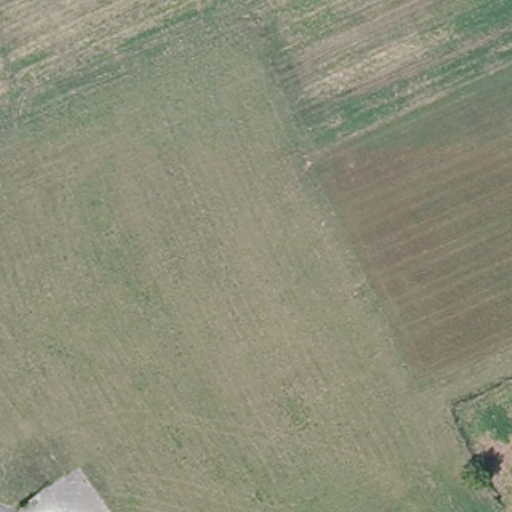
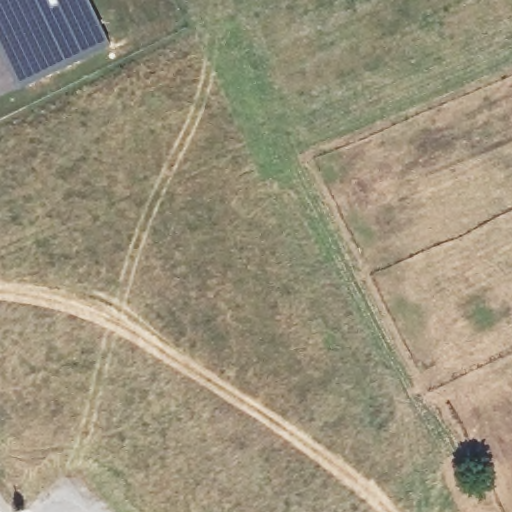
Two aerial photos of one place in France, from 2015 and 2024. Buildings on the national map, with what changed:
new [(63,67),(20,87),(0,46),(0,0),(91,0),(111,42),(63,67)]

